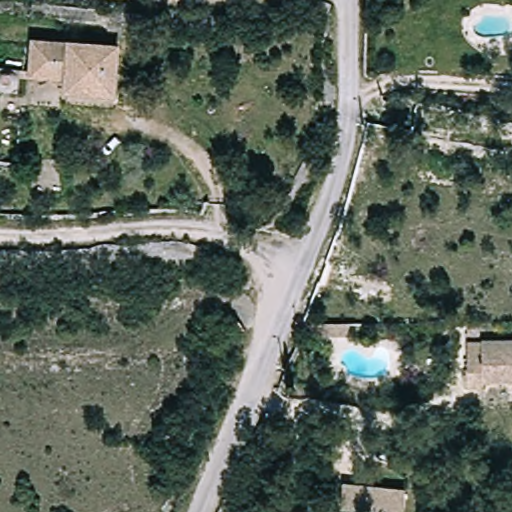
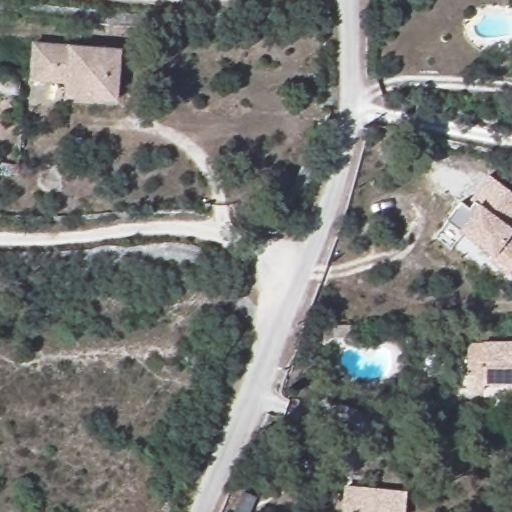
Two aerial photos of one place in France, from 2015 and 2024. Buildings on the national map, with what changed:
unchanged [(34,44),(119,50),(116,104),(62,99),(63,85),(31,83),(34,44)]
unchanged [(24,79),(21,97),(3,95),(5,77),(24,79)]
new [(512,194),(512,226),(511,228),(512,229),(512,232),(508,238),(512,241),(512,269),(507,276),(488,261),(491,258),(458,231),(447,221),(460,204),(467,209),(472,203),(469,200),(489,175),(512,194)]
unchanged [(323,328),(344,328),(349,328),(350,341),(324,341),(323,328)]
unchanged [(467,345),(512,344),(512,393),(511,387),(482,387),(482,395),(467,395),(467,345)]
unchanged [(405,512),(340,512),(342,487),(407,492),(405,512)]

